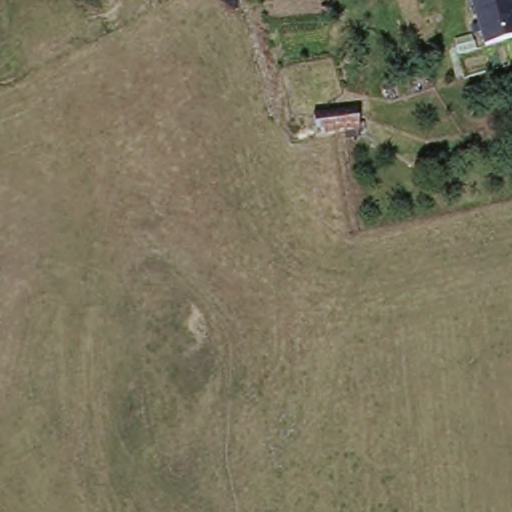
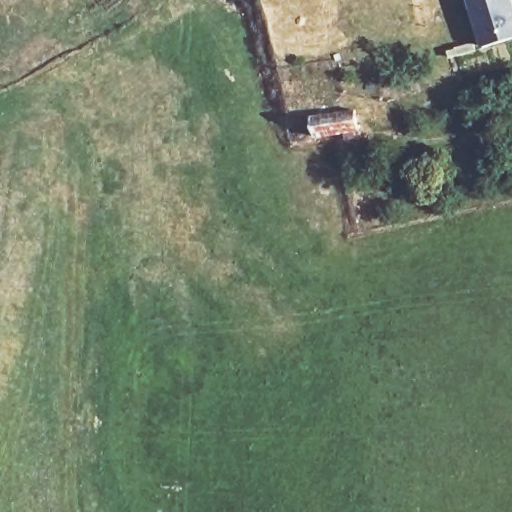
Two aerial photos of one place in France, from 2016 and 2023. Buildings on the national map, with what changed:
unchanged [(468,0),(512,0),(512,32),(487,45),(468,0)]
unchanged [(360,130),(316,136),(314,115),(356,109),(360,130)]

